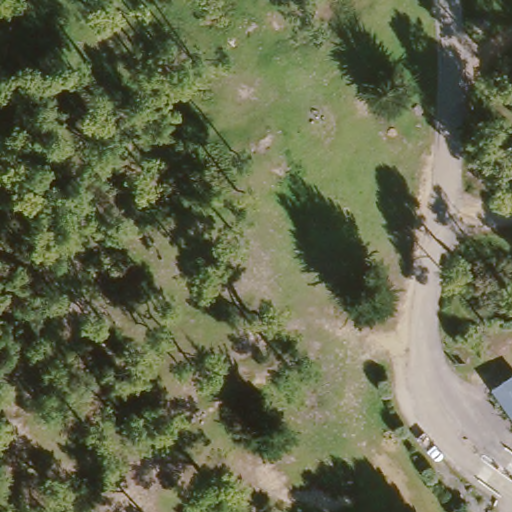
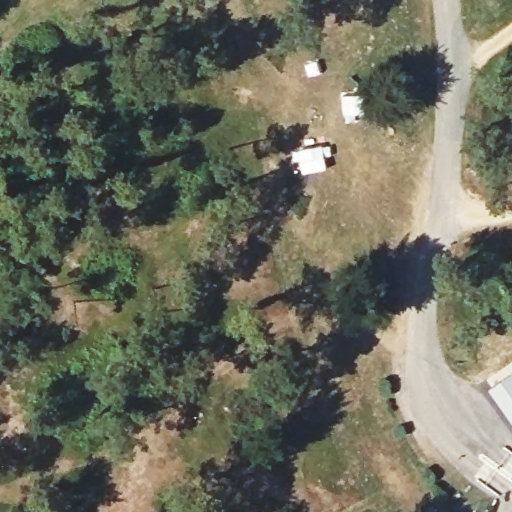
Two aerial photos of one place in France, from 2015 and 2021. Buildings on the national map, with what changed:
unchanged [(490,390),(512,374),(512,421),(490,390)]

